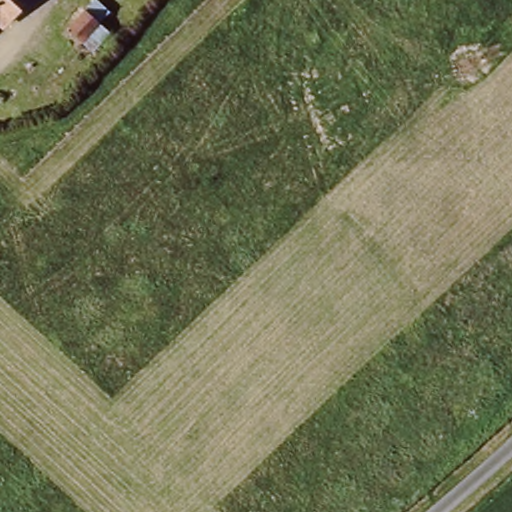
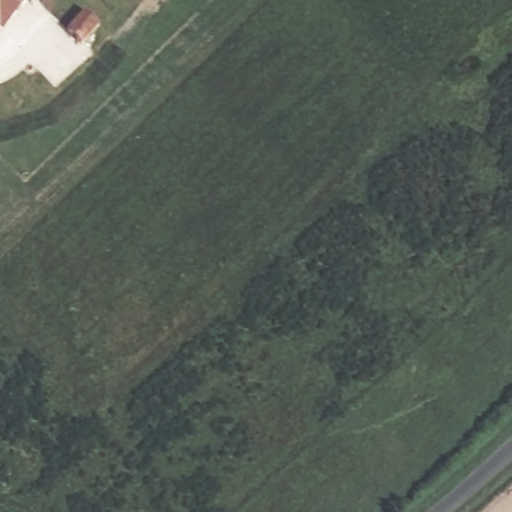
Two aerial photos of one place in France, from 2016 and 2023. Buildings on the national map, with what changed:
unchanged [(10,19),(0,8),(0,0),(30,0),(10,19)]
unchanged [(90,42),(74,26),(97,3),(113,19),(90,42)]
unchanged [(0,28),(0,8),(10,19),(0,28)]

